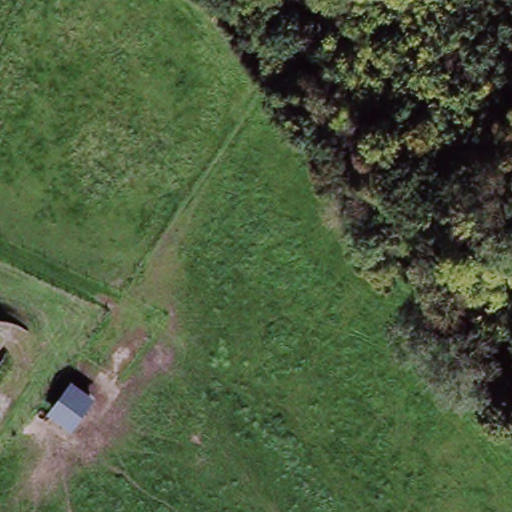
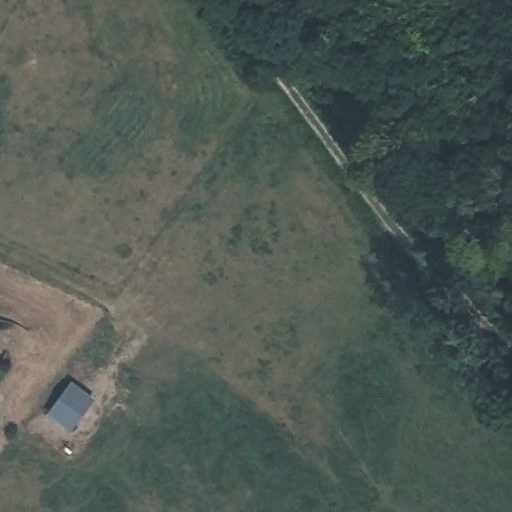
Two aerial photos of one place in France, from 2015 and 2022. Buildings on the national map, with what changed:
unchanged [(97,398),(72,432),(45,412),(72,378),(97,398)]

